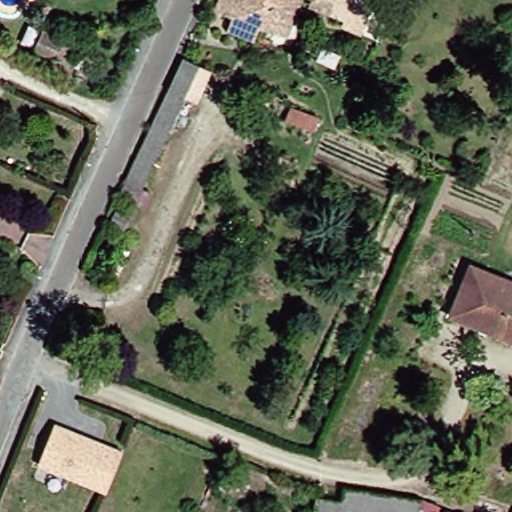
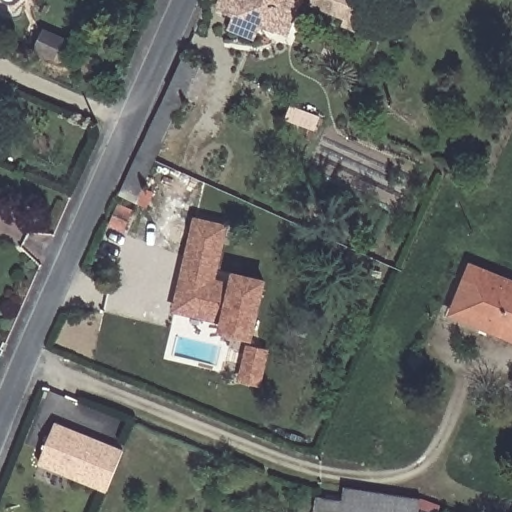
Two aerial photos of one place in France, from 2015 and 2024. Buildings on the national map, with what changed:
unchanged [(276,28),(275,31),(258,24),(253,37),(229,27),(235,13),(217,6),(220,0),(299,0),(287,33),(276,28)]
unchanged [(309,2),(310,0),(335,0),(331,11),(309,2)]
unchanged [(56,57),(36,48),(45,27),(66,36),(56,57)]
unchanged [(138,151),(183,56),(199,64),(154,159),(134,201),(118,194),(138,151)]
unchanged [(124,230),(109,223),(118,204),(133,210),(124,230)]
new [(195,217),(230,226),(218,279),(231,281),(233,271),(268,280),(254,341),(218,333),(220,323),(173,313),(195,217)]
unchanged [(461,271),(512,291),(512,341),(508,339),(506,344),(479,333),(482,325),(445,310),(461,271)]
new [(248,344),(270,350),(261,388),(239,381),(248,344)]
unchanged [(55,423),(124,449),(106,494),(59,474),(55,487),(36,478),(41,468),(38,465),(55,423)]
unchanged [(424,512),(323,512),(303,509),(308,496),(331,500),(333,486),(411,498),(428,504),(424,512)]

